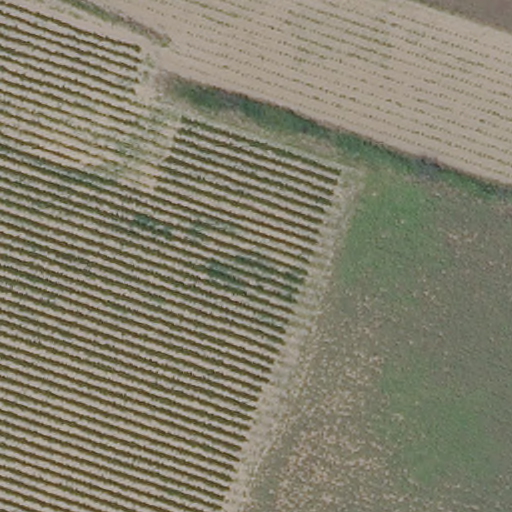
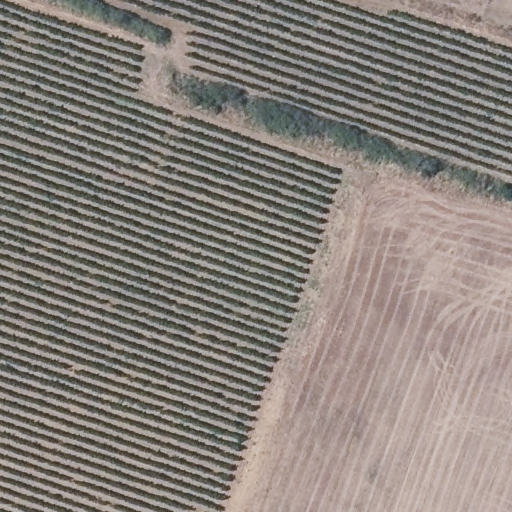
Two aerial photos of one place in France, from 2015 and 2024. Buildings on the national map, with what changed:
[]

